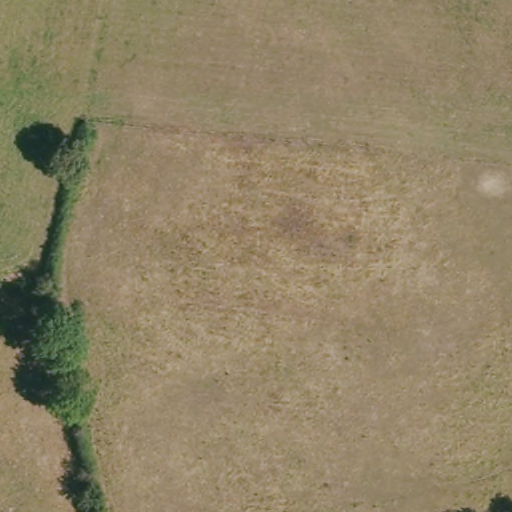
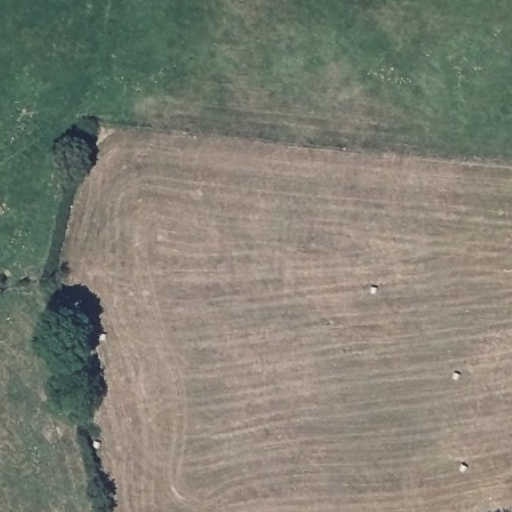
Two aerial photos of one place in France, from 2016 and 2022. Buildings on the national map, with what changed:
[]

